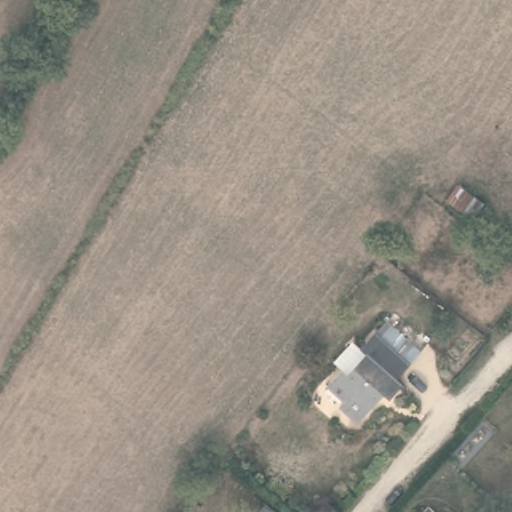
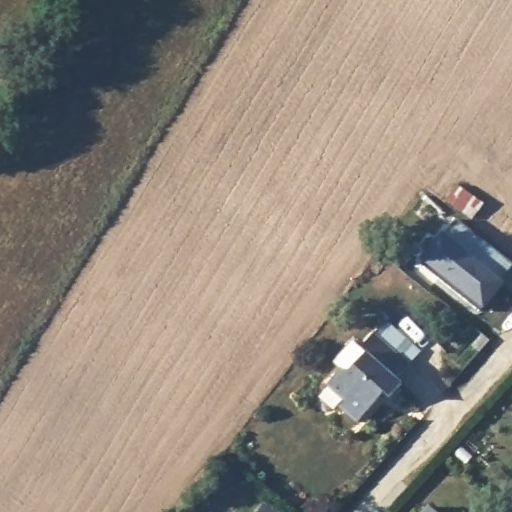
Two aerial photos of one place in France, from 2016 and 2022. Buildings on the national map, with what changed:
unchanged [(451,203),(465,188),(491,209),(479,225),(451,203)]
new [(457,220),(512,263),(512,268),(500,283),(501,284),(480,312),(459,296),(451,289),(421,265),(457,220)]
unchanged [(406,374),(412,379),(398,395),(391,389),(366,416),(349,403),(354,397),(332,379),(347,362),(353,366),(367,348),(362,342),(376,325),(418,360),(406,374)]
unchanged [(286,512),(272,512),(278,505),(286,512)]
unchanged [(434,512),(420,512),(427,505),(434,512)]

